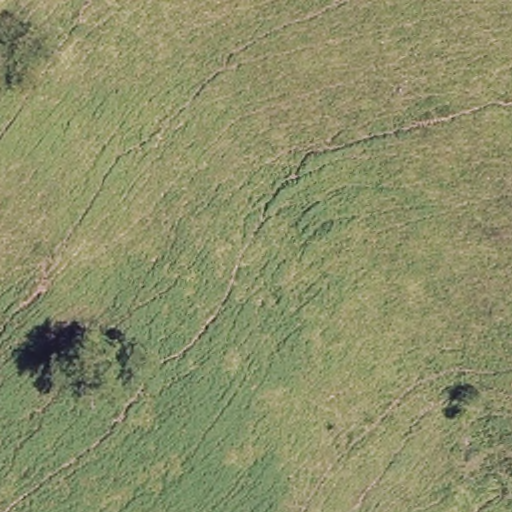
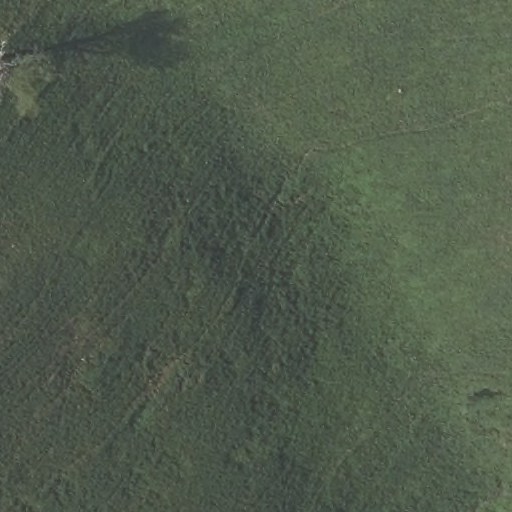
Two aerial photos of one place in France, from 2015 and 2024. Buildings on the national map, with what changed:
[]

